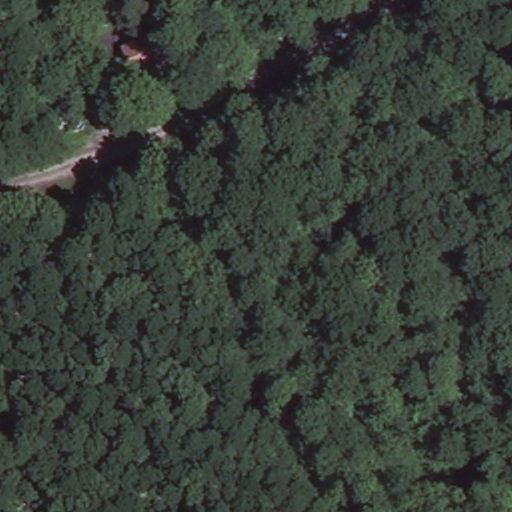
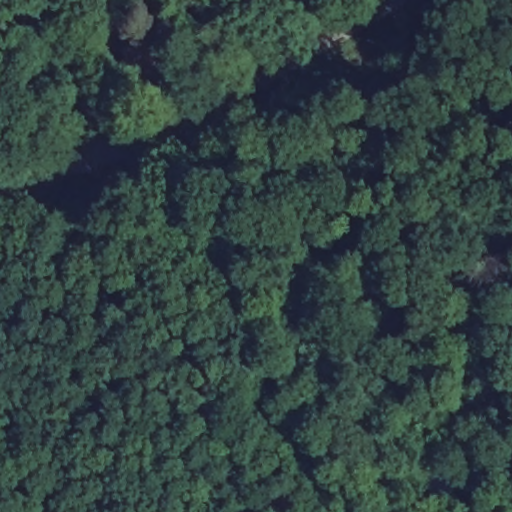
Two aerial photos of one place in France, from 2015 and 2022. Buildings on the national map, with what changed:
unchanged [(116,34),(164,15),(190,64),(140,83),(116,34)]

